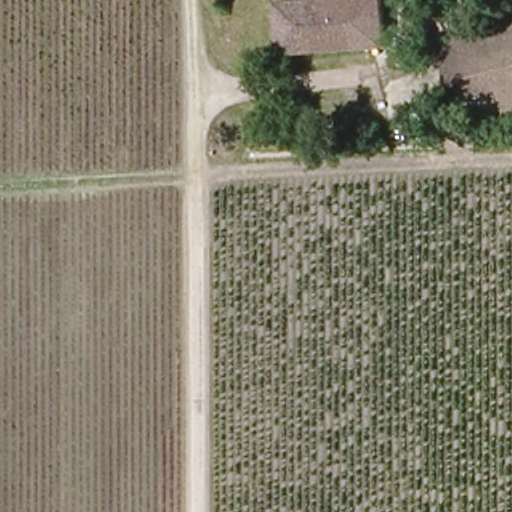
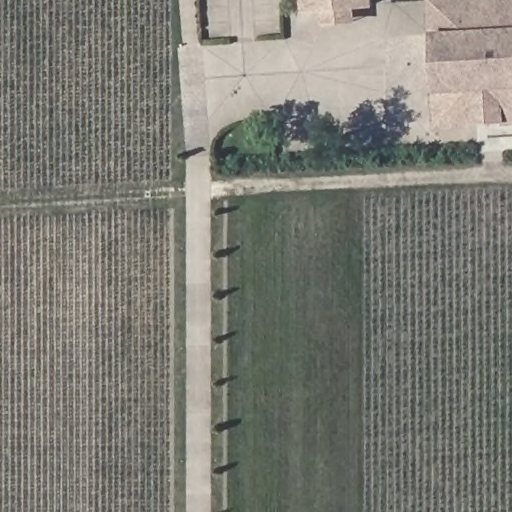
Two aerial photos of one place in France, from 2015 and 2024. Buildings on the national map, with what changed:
unchanged [(364,2),(387,0),(391,51),(286,59),(282,5),(299,4),(299,0),(364,0),(364,2)]
new [(503,122),(474,124),(474,127),(432,129),(430,93),(436,92),(432,32),(427,32),(426,0),(512,0),(512,125),(503,125),(503,122)]
demolished [(451,103),(437,44),(512,27),(512,88),(498,91),(451,103)]

